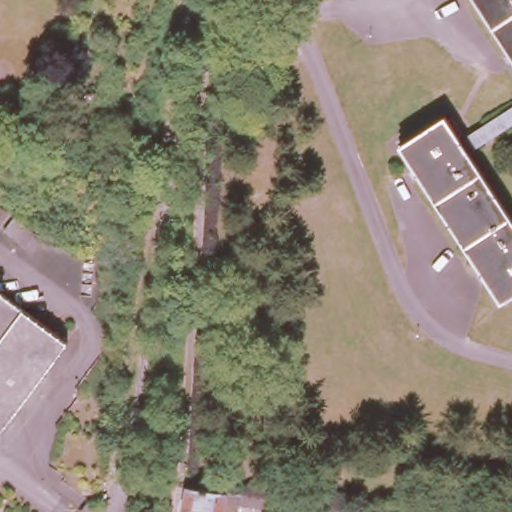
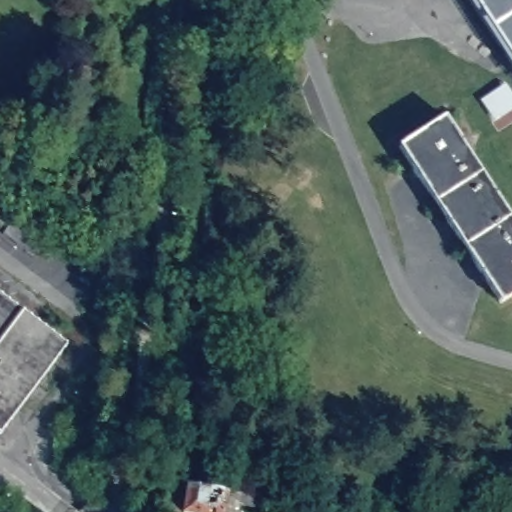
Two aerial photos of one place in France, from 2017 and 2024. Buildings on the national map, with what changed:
unchanged [(476,0),(512,0),(512,57),(512,56),(476,0)]
unchanged [(460,136),(512,102),(512,121),(469,149),(460,136)]
unchanged [(444,111),(460,136),(469,149),(512,215),(512,290),(500,299),(485,277),(413,165),(397,141),(444,111)]
unchanged [(8,214),(0,225),(0,208),(8,214)]
unchanged [(42,241),(33,255),(4,232),(14,219),(42,241)]
unchanged [(67,343),(0,431),(0,292),(67,343)]
unchanged [(182,480),(222,487),(234,489),(234,494),(257,498),(257,503),(232,499),(228,498),(226,512),(208,512),(178,508),(182,480)]

